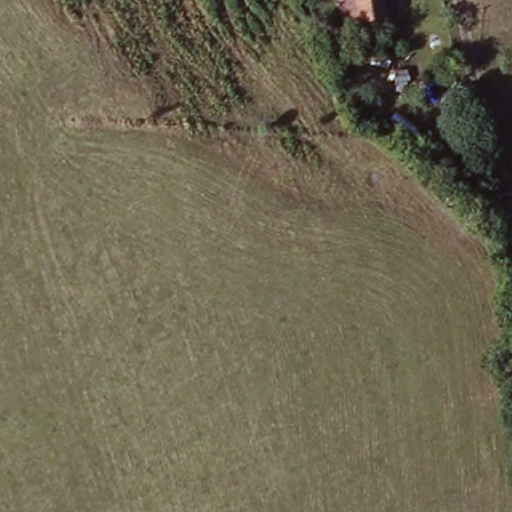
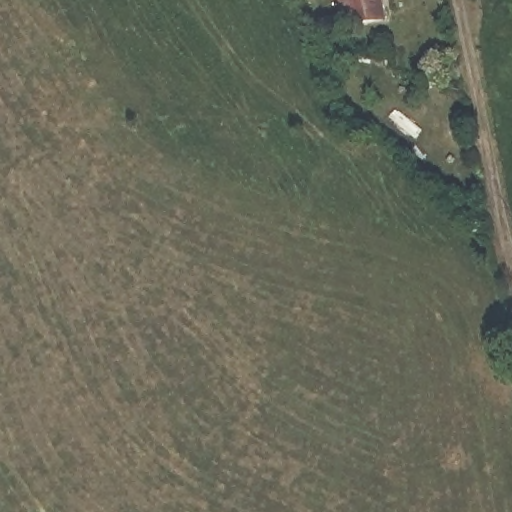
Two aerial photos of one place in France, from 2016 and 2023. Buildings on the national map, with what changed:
unchanged [(357,29),(352,0),(378,0),(382,25),(357,29)]

